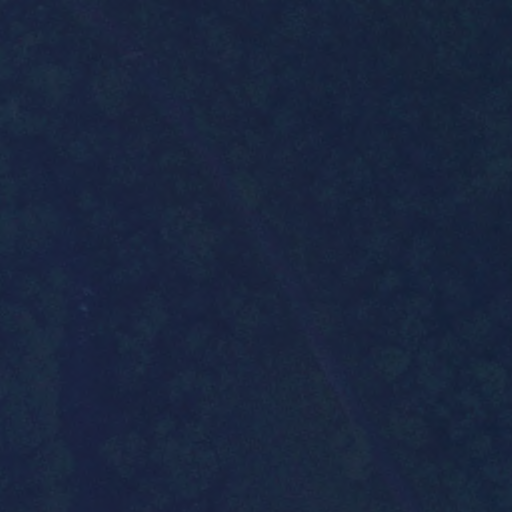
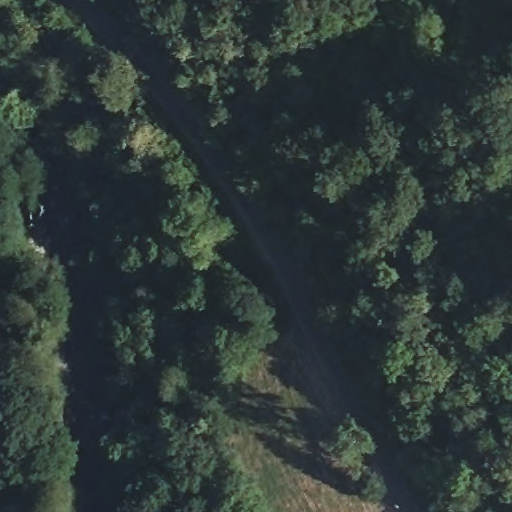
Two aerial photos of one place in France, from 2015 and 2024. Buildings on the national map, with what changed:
[]

